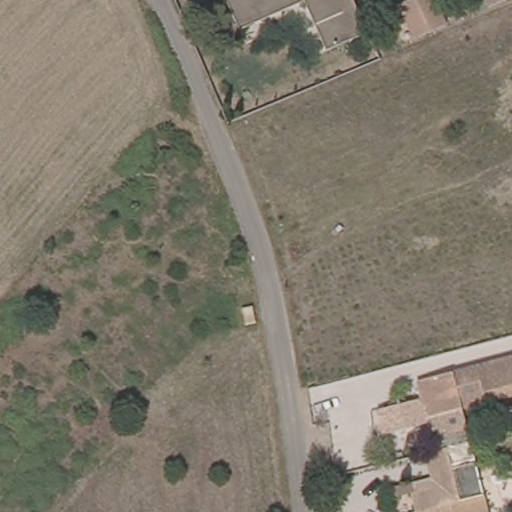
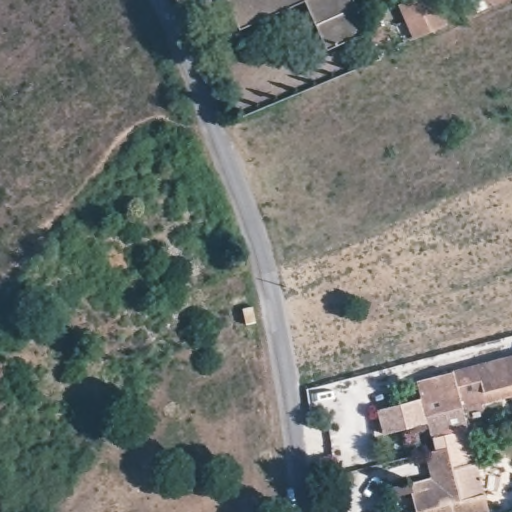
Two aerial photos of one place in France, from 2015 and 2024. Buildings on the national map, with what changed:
unchanged [(308,3),(242,35),(226,0),(355,0),(371,34),(331,52),(308,3)]
unchanged [(410,35),(397,2),(403,0),(438,0),(446,21),(410,35)]
unchanged [(482,0),(498,0),(485,5),(482,0)]
unchanged [(254,306),(258,322),(247,324),(243,308),(254,306)]
unchanged [(423,380),(512,358),(512,397),(489,402),(467,408),(432,417),(423,380)]
unchanged [(413,492),(434,485),(429,464),(437,462),(440,461),(435,445),(430,423),(383,435),(377,410),(428,398),(432,417),(463,409),(470,436),(474,453),(489,512),(418,512),(413,492)]

